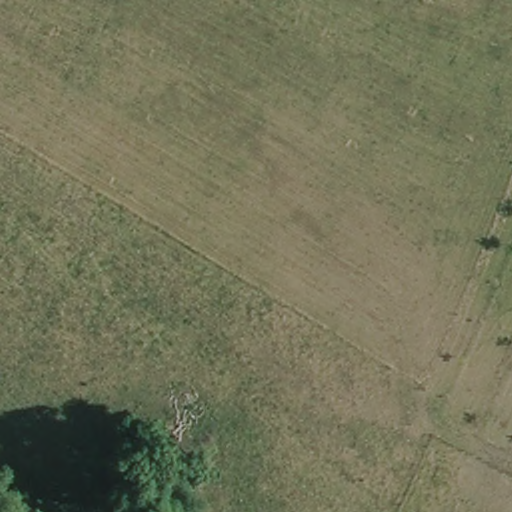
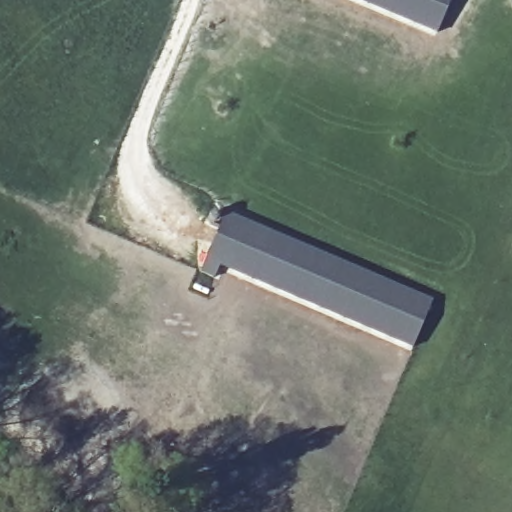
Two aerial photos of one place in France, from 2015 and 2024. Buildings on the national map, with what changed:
new [(431,38),(336,0),(447,0),(431,38)]
new [(223,210),(431,297),(407,354),(214,273),(208,287),(194,281),(223,210)]

